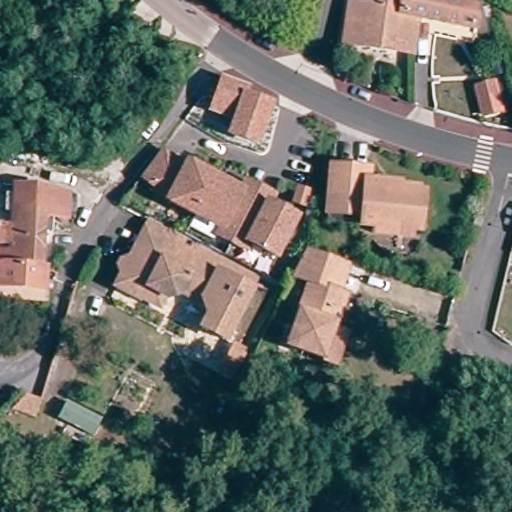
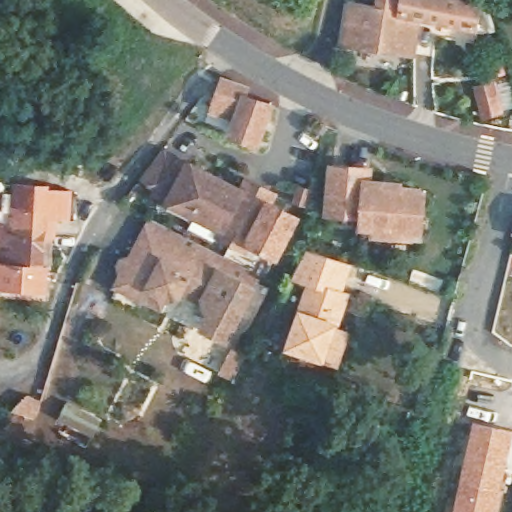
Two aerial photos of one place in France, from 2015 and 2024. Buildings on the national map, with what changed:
unchanged [(346,3),(356,4),(355,12),(373,14),(375,0),(399,0),(396,24),(414,28),(410,60),(338,50),(344,11),(346,3)]
unchanged [(456,34),(414,28),(396,24),(399,0),(407,0),(460,7),(474,9),(470,35),(456,34)]
unchanged [(231,134),(236,117),(208,108),(218,79),(247,89),(244,97),(268,105),(255,143),(231,134)]
unchanged [(493,120),(487,93),(505,89),(510,117),(493,120)]
unchanged [(168,153),(193,165),(194,164),(220,177),(221,176),(247,189),(252,179),(280,195),(275,204),(301,219),(281,257),(255,243),(251,249),(223,234),(226,228),(200,214),(174,200),(176,198),(149,179),(168,153)]
unchanged [(368,236),(368,229),(357,229),(358,215),(322,212),(327,168),(363,172),(362,184),(378,186),(394,188),(393,192),(411,193),(411,197),(417,198),(413,234),(406,234),(405,240),(368,236)]
unchanged [(10,268),(11,254),(11,248),(15,188),(46,189),(46,194),(68,195),(66,219),(47,218),(42,269),(10,268)]
unchanged [(222,342),(197,329),(203,318),(198,307),(175,294),(160,297),(154,308),(116,289),(123,275),(117,273),(122,264),(128,267),(135,252),(143,237),(141,235),(147,223),(177,239),(255,278),(222,342)]
unchanged [(0,286),(0,247),(6,248),(11,248),(11,254),(10,268),(42,269),(47,269),(46,289),(0,286)]
unchanged [(329,371),(314,367),(280,355),(296,306),(301,290),(282,284),(296,257),(339,270),(329,299),(336,302),(332,312),(324,337),(338,342),(329,371)]
new [(456,493),(471,419),(512,429),(512,471),(507,471),(499,512),(450,512),(456,493)]

